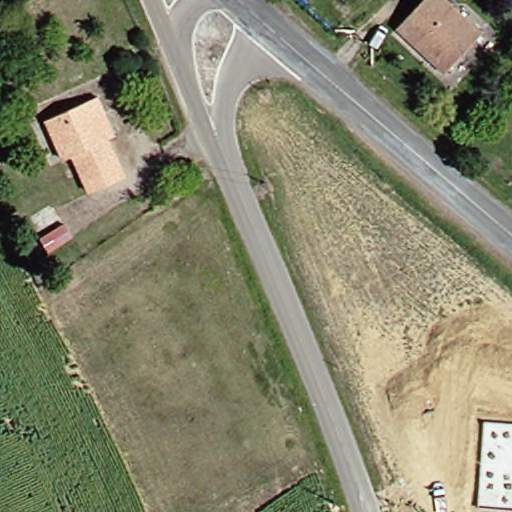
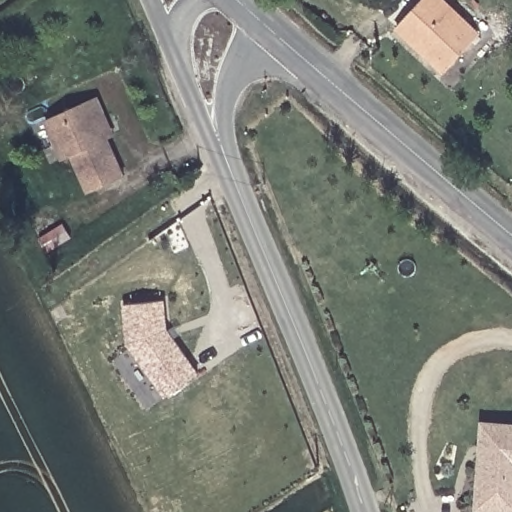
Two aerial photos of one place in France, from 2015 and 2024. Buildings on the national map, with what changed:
unchanged [(476,35),(441,74),(390,30),(417,0),(436,0),(476,35)]
unchanged [(86,197),(69,157),(55,165),(37,122),(95,94),(102,113),(99,115),(109,139),(127,177),(86,197)]
new [(164,391),(126,338),(129,300),(171,303),(169,332),(195,368),(164,391)]
unchanged [(493,512),(474,511),(481,421),(512,423),(512,512),(493,512)]

